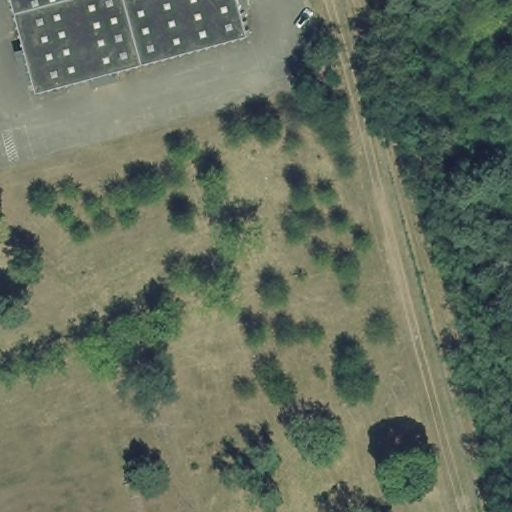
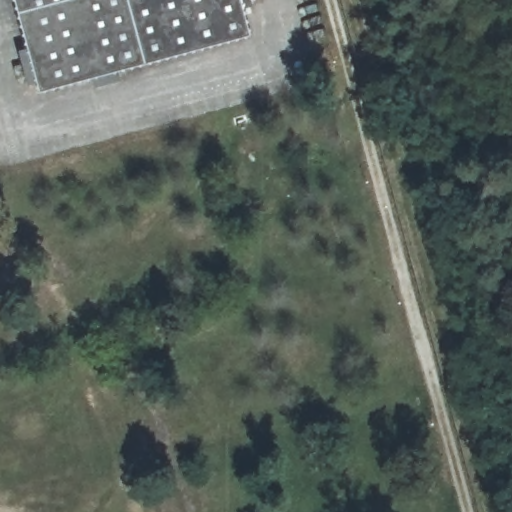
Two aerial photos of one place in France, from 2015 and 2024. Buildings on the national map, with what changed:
unchanged [(39,89),(16,0),(242,0),(251,33),(39,89)]

